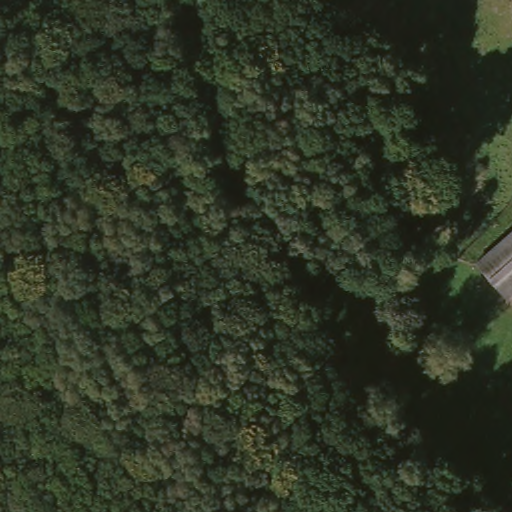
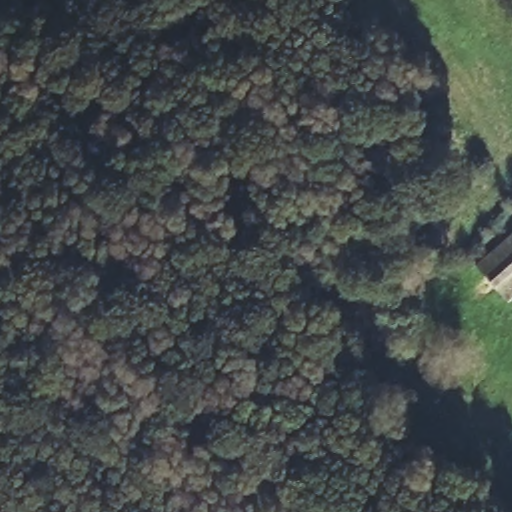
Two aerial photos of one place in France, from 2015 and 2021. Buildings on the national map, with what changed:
unchanged [(503,300),(469,262),(512,225),(512,292),(503,300)]

